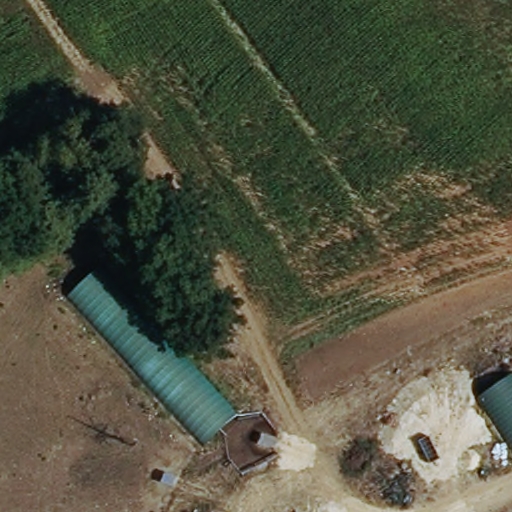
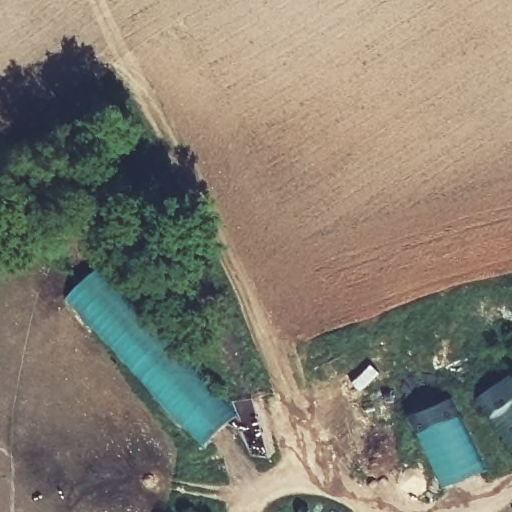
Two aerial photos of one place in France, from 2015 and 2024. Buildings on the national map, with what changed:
unchanged [(67,298),(105,264),(238,413),(203,443),(67,298)]
unchanged [(512,447),(478,398),(512,374),(512,447)]
new [(412,414),(453,397),(487,470),(445,487),(412,414)]

